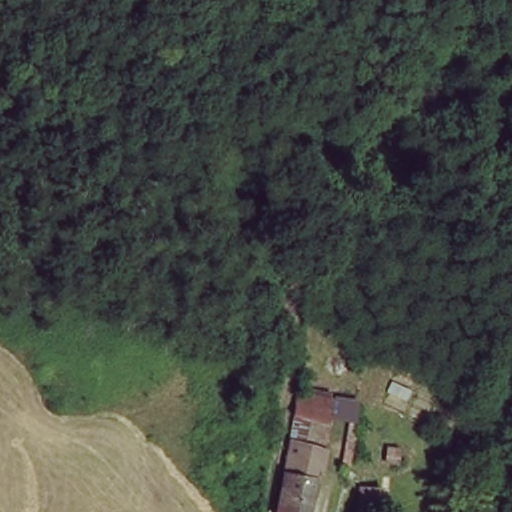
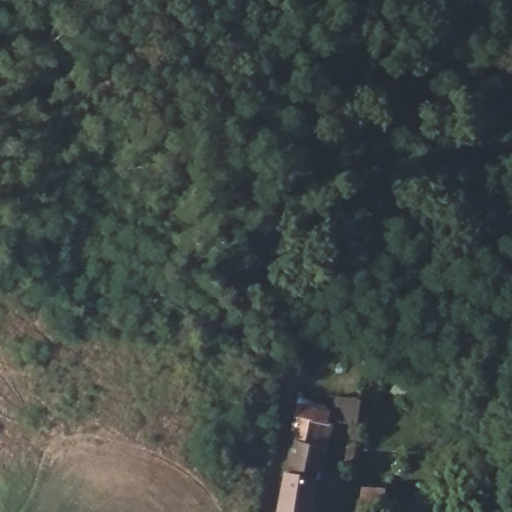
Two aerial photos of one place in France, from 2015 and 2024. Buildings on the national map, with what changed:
unchanged [(323,390),(320,404),(308,402),(310,388),(323,390)]
unchanged [(272,500),(282,501),(300,409),(331,415),(325,451),(314,449),(310,468),(317,470),(310,507),(299,505),(298,512),(269,512),(272,500)]

